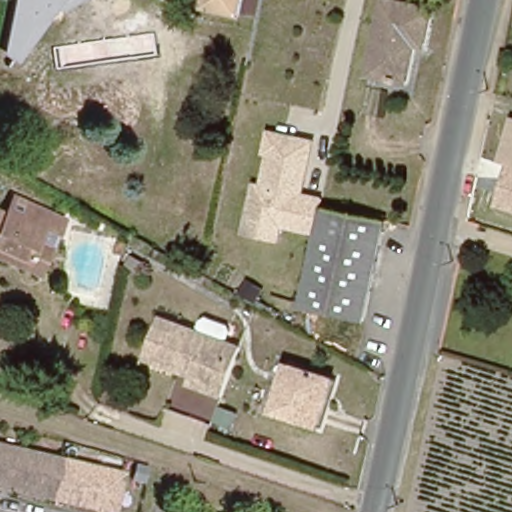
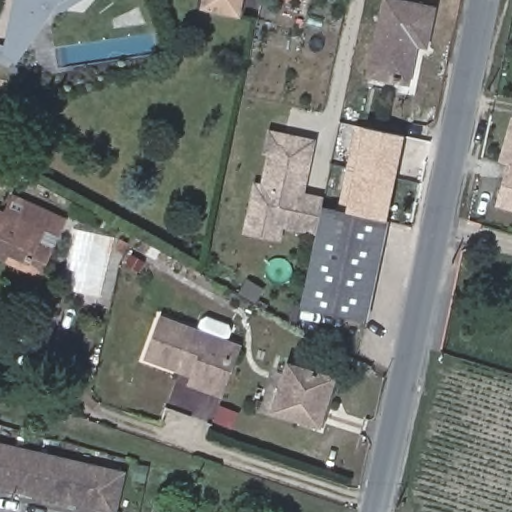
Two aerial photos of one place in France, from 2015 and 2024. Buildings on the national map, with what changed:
unchanged [(51,9),(15,66),(0,55),(11,0),(83,0),(56,15),(51,9)]
unchanged [(239,0),(236,10),(209,5),(210,0),(239,0)]
unchanged [(417,0),(435,4),(425,40),(414,37),(402,86),(365,79),(384,0),(417,0)]
unchanged [(506,165),(497,161),(511,115),(512,115),(512,212),(493,207),(506,165)]
new [(354,126),(362,127),(404,136),(385,219),(337,209),(354,126)]
unchanged [(252,182),(261,184),(267,155),(261,154),(267,130),(315,140),(305,194),(326,197),(325,206),(320,205),(314,234),(283,227),(279,241),(241,234),(252,182)]
unchanged [(35,271),(0,256),(0,206),(14,213),(21,200),(58,218),(52,231),(42,226),(31,250),(41,255),(35,271)]
unchanged [(364,322),(297,308),(314,234),(320,205),(325,206),(385,219),(364,322)]
unchanged [(190,375),(179,371),(145,359),(160,317),(241,346),(225,388),(222,395),(205,390),(187,382),(190,375)]
unchanged [(286,364),(331,379),(316,425),(272,410),(286,364)]
unchanged [(237,413),(232,427),(214,420),(219,406),(237,413)]
unchanged [(119,470),(109,507),(0,481),(0,442),(119,470)]

